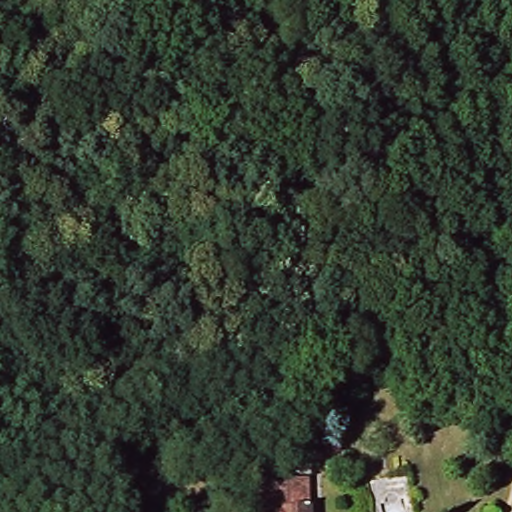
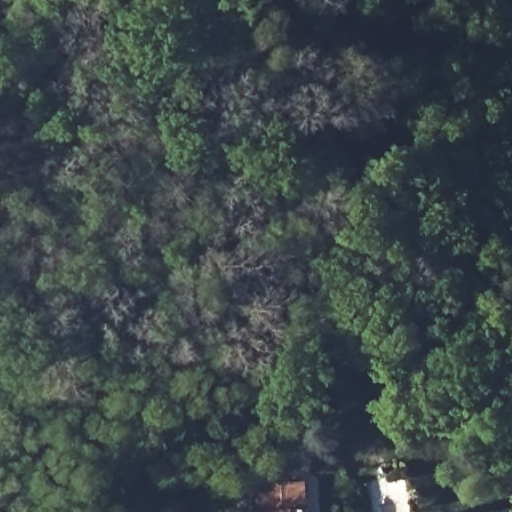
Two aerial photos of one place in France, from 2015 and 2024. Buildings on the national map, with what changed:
unchanged [(310,510),(311,512),(260,512),(260,511),(258,496),(278,495),(278,486),(307,485),(307,494),(308,509),(310,510)]

